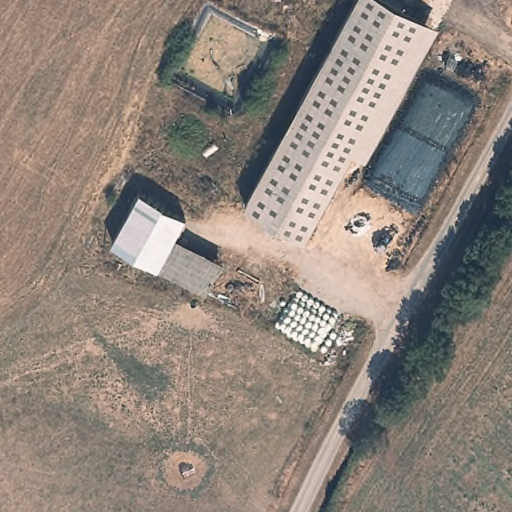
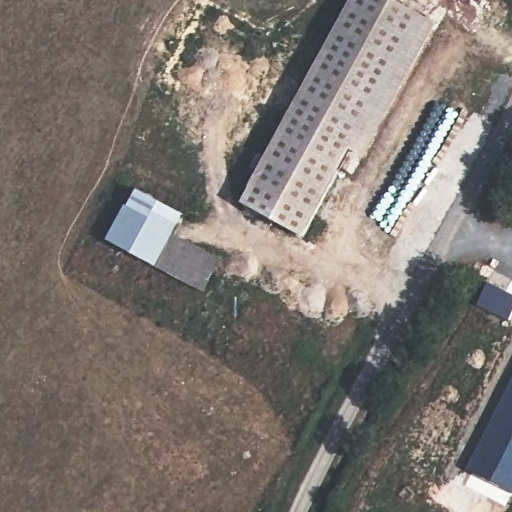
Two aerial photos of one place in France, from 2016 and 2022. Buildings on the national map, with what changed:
unchanged [(255,207),(369,0),(392,0),(432,22),(311,239),(255,207)]
unchanged [(187,215),(177,235),(227,260),(209,296),(109,244),(139,187),(187,215)]
new [(512,494),(466,470),(512,378),(512,494)]

